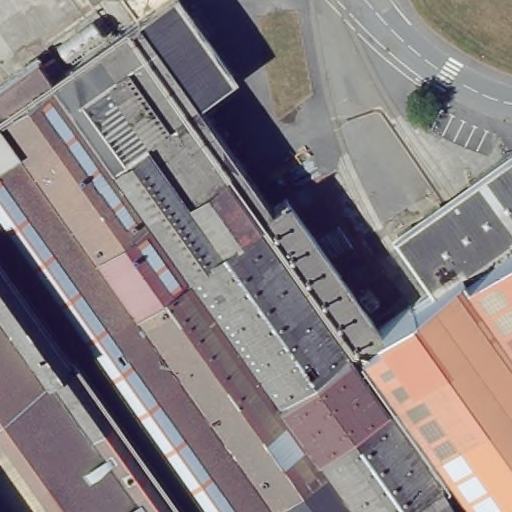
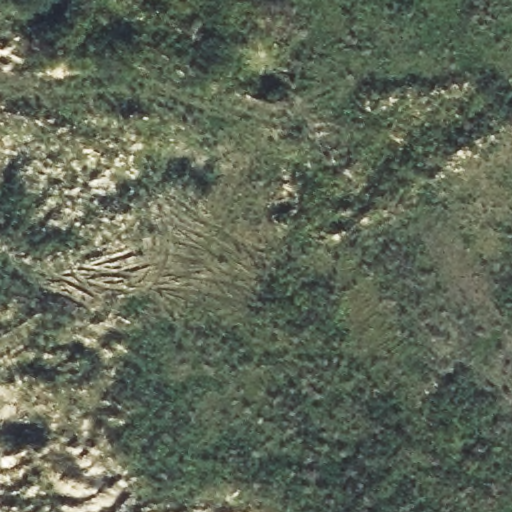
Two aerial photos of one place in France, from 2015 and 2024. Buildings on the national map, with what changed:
demolished [(34,61),(40,68),(81,40),(76,33),(101,15),(116,37),(170,0),(171,0),(201,41),(163,69),(192,109),(269,214),(282,203),(286,207),(290,205),(385,335),(379,340),(350,361),(456,512),(0,512),(0,85),(19,72),(34,61)]
demolished [(201,41),(230,82),(192,109),(163,69),(201,41)]
demolished [(512,158),(512,247),(435,302),(402,255),(396,238),(512,158)]

